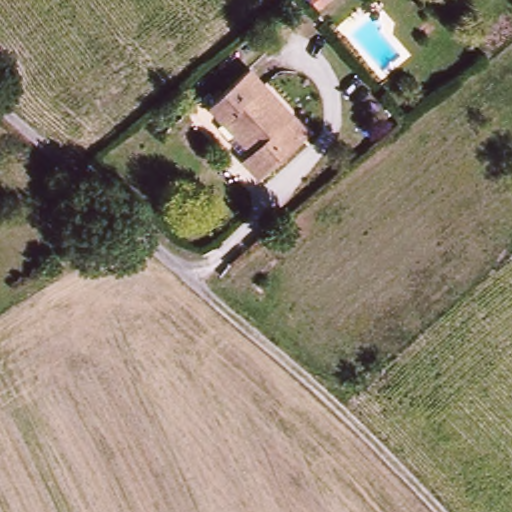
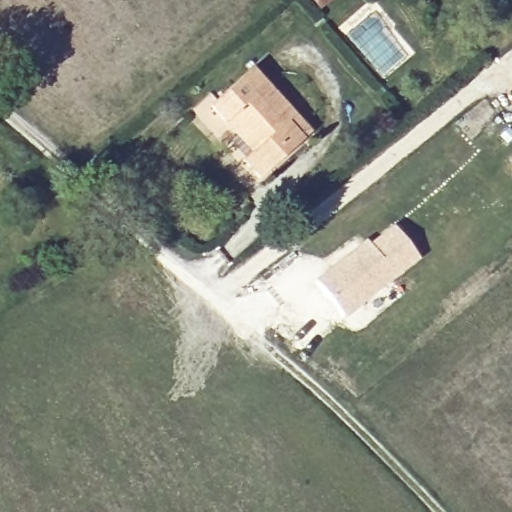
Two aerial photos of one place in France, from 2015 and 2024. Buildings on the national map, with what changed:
new [(313,0),(326,0),(318,6),(313,0)]
unchanged [(330,26),(320,14),(338,0),(352,0),(357,5),(330,26)]
unchanged [(263,148),(223,101),(260,70),(317,135),(268,176),(252,157),(263,148)]
new [(365,237),(367,240),(391,223),(420,257),(345,315),(315,278),(365,237)]

